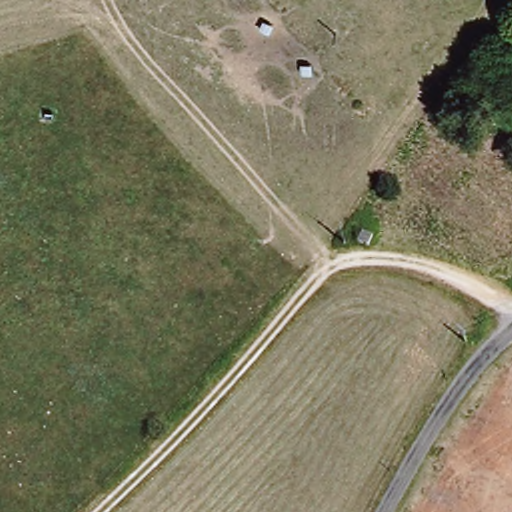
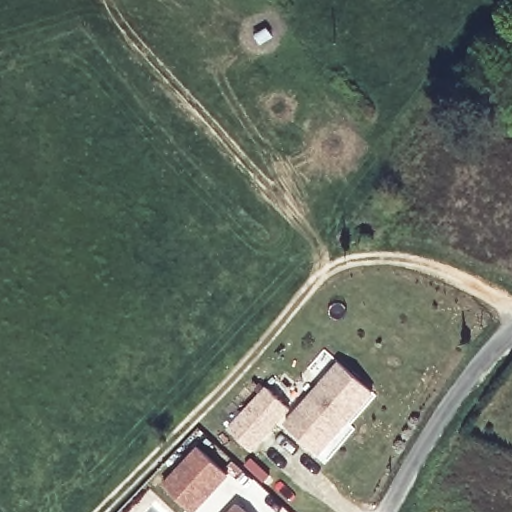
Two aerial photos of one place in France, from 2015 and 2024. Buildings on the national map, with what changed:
new [(375,392),(321,455),(284,424),(338,362),(375,392)]
new [(226,429),(266,386),(291,411),(252,452),(226,429)]
new [(229,476),(196,512),(192,512),(162,483),(197,446),(229,476)]
new [(228,512),(237,502),(247,512),(228,512)]

